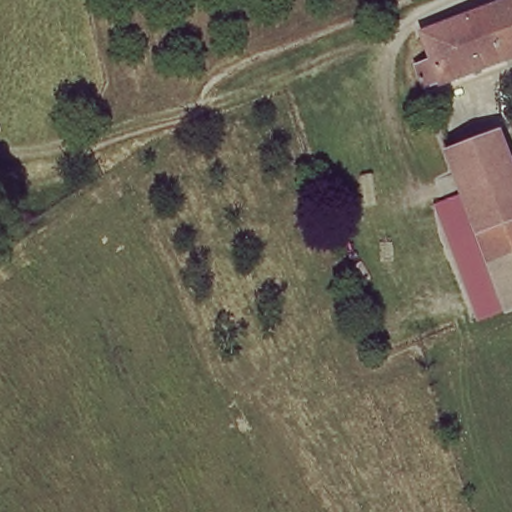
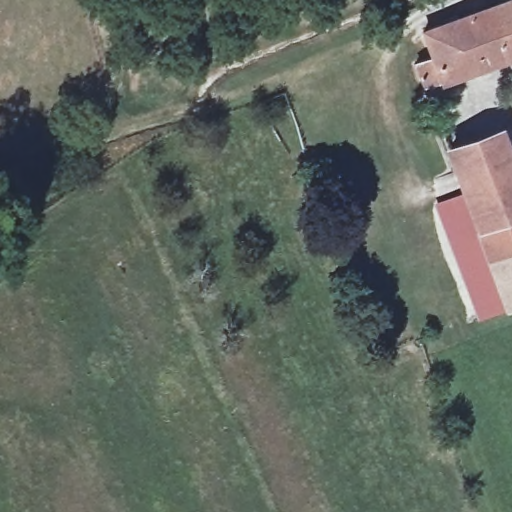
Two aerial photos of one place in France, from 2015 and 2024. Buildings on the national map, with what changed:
unchanged [(407,45),(420,40),(416,29),(496,0),(512,0),(512,51),(422,83),(407,46),(407,45)]
unchanged [(459,154),(510,136),(512,144),(512,225),(482,234),(470,191),(459,154)]
unchanged [(503,307),(472,317),(438,200),(470,191),(482,234),(503,307)]
unchanged [(512,225),(512,304),(503,307),(482,234),(512,225)]

